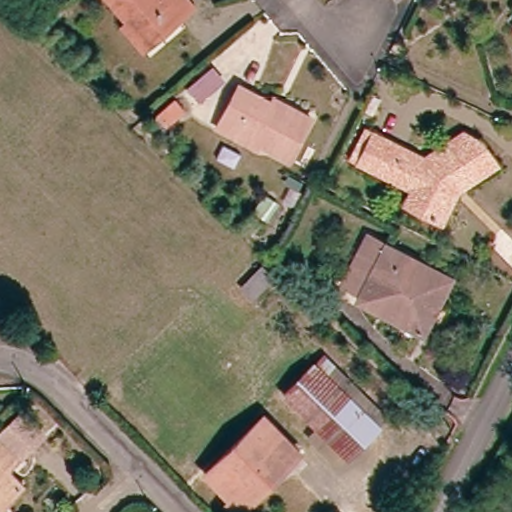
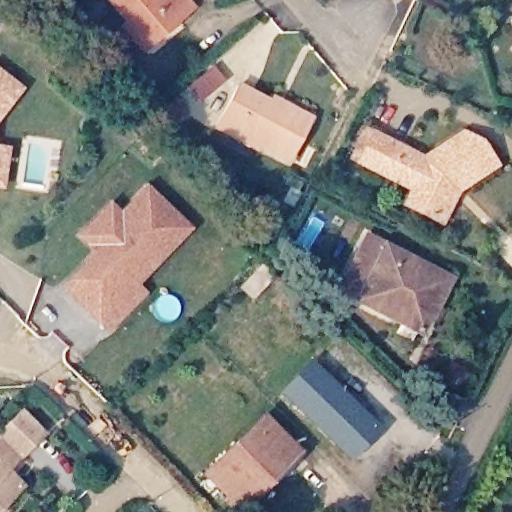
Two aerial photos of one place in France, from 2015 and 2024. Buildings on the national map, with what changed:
unchanged [(127,23),(134,17),(120,0),(190,0),(196,9),(155,45),(148,49),(127,23)]
new [(19,87),(0,111),(0,73),(19,87)]
unchanged [(259,144),(219,123),(241,84),(281,106),(285,100),(312,116),(291,154),(262,137),(259,144)]
unchanged [(408,193),(412,187),(388,174),(361,159),(376,130),(420,152),(465,132),(480,142),(490,160),(455,180),(450,189),(456,193),(440,220),(421,210),(405,201),(408,193)]
new [(6,149),(0,186),(0,185),(0,148),(6,149)]
new [(98,252),(80,235),(109,204),(119,214),(146,186),(178,217),(152,245),(149,241),(120,270),(134,282),(143,291),(107,328),(65,287),(98,252)]
new [(149,241),(152,245),(178,217),(188,227),(134,282),(120,270),(149,241)]
unchanged [(431,310),(423,329),(341,287),(371,234),(423,261),(451,271),(431,310)]
unchanged [(271,276),(251,297),(240,285),(261,265),(271,276)]
unchanged [(310,435),(318,427),(286,394),(317,362),(381,422),(349,456),(341,462),(310,435)]
unchanged [(231,499),(209,474),(266,415),(305,453),(252,507),(246,512),(236,512),(226,502),(231,499)]
unchanged [(2,437),(25,417),(45,438),(4,475),(21,492),(0,511),(0,447),(6,441),(2,437)]

